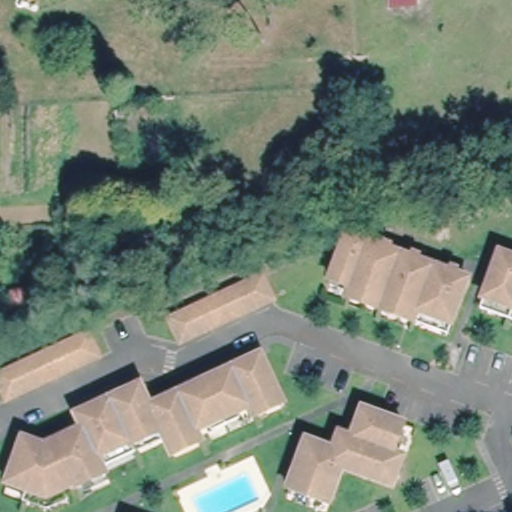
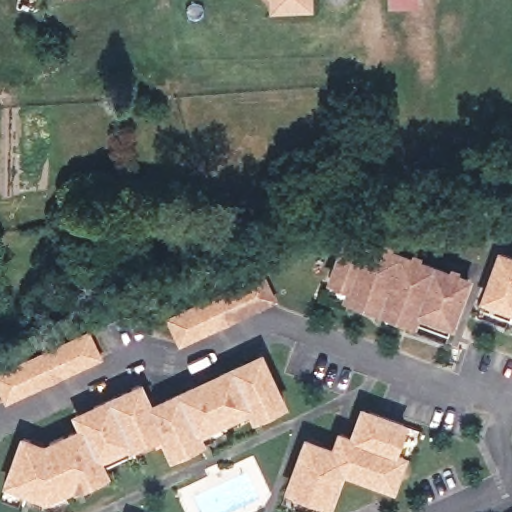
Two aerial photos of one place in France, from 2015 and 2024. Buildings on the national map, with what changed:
new [(270,11),(269,0),(313,0),(313,10),(270,11)]
unchanged [(390,0),(421,0),(422,7),(390,9),(390,0)]
unchanged [(377,308),(342,295),(346,283),(362,240),(464,276),(447,321),(443,332),(410,320),(377,308)]
unchanged [(491,293),(507,250),(512,252),(512,316),(485,305),(491,293)]
unchanged [(167,308),(193,297),(262,268),(273,293),(206,323),(180,335),(167,308)]
unchanged [(84,328),(96,353),(5,395),(0,385),(0,367),(84,328)]
unchanged [(197,388),(200,393),(225,382),(226,374),(263,356),(283,396),(172,445),(165,430),(103,457),(110,472),(52,498),(12,482),(31,438),(50,447),(48,452),(60,456),(81,445),(75,432),(88,427),(82,412),(101,405),(131,392),(145,385),(152,400),(156,407),(197,388)]
unchanged [(285,481),(288,476),(306,432),(345,445),(362,400),(405,416),(392,445),(402,448),(388,478),(379,475),(339,460),(326,490),(308,484),(307,489),(285,481)]

